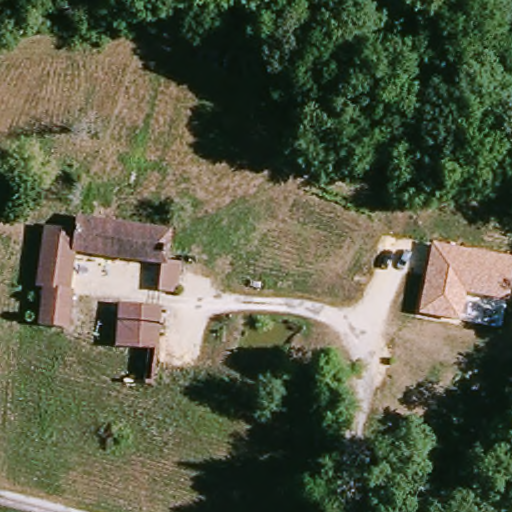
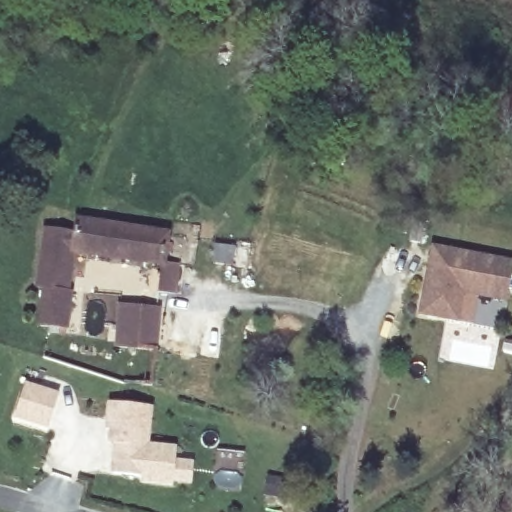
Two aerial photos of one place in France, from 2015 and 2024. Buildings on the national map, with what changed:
unchanged [(162,268),(75,251),(64,333),(33,328),(40,288),(34,286),(42,226),(52,227),(52,230),(69,233),(72,217),(166,234),(162,268)]
unchanged [(512,259),(512,269),(507,302),(465,294),(460,321),(420,315),(432,245),(512,259)]
unchanged [(174,270),(170,293),(157,292),(162,268),(174,270)]
unchanged [(155,353),(115,348),(122,305),(160,310),(155,353)]
new [(60,393),(49,429),(15,418),(27,382),(60,393)]
new [(146,480),(109,475),(112,444),(107,444),(109,428),(105,428),(108,402),(154,406),(146,480)]

